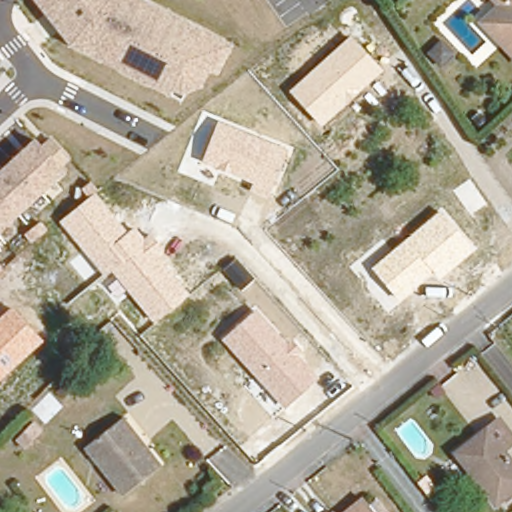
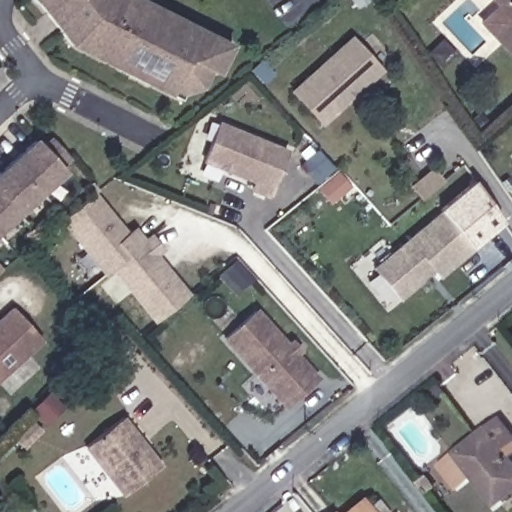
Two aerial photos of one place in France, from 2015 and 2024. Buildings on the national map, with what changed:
unchanged [(221,74),(211,69),(199,88),(183,93),(173,89),(170,98),(70,45),(35,0),(148,0),(233,44),(221,74)]
unchanged [(506,1),(498,8),(512,23),(512,62),(476,23),(492,5),(488,0),(505,0),(506,1)]
unchanged [(512,23),(498,8),(506,1),(505,0),(512,0),(512,23)]
unchanged [(322,126),(290,93),(351,34),(384,71),(322,126)]
unchanged [(269,199),(251,191),(253,182),(202,162),(218,121),(291,151),(269,199)]
unchanged [(36,138),(44,146),(53,137),(71,155),(61,164),(67,170),(0,233),(0,170),(36,138)]
unchanged [(152,322),(125,290),(115,297),(109,287),(118,280),(112,272),(105,276),(61,221),(88,198),(81,188),(91,180),(99,190),(96,194),(127,230),(134,224),(145,238),(152,233),(163,248),(157,253),(191,295),(152,322)]
new [(476,182),(504,223),(476,249),(443,210),(476,182)]
unchanged [(440,280),(433,272),(400,301),(373,268),(443,210),(476,249),(440,280)]
unchanged [(0,381),(0,319),(15,306),(46,340),(0,381)]
unchanged [(285,407),(222,340),(254,311),(284,342),(291,336),(304,351),(297,356),(317,379),(285,407)]
unchanged [(512,444),(502,452),(512,465),(512,491),(492,507),(453,454),(500,420),(512,437),(512,444)]
unchanged [(118,502),(80,452),(122,422),(158,471),(118,502)]
unchanged [(374,512),(347,512),(365,499),(374,512)]
unchanged [(338,512),(326,512),(334,507),(338,512)]

